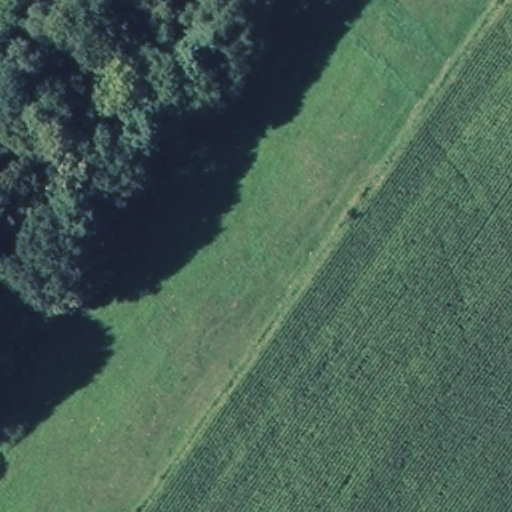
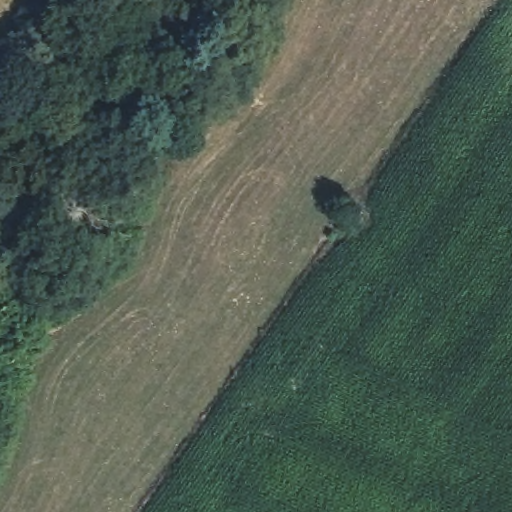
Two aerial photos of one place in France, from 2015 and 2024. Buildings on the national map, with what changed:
[]

